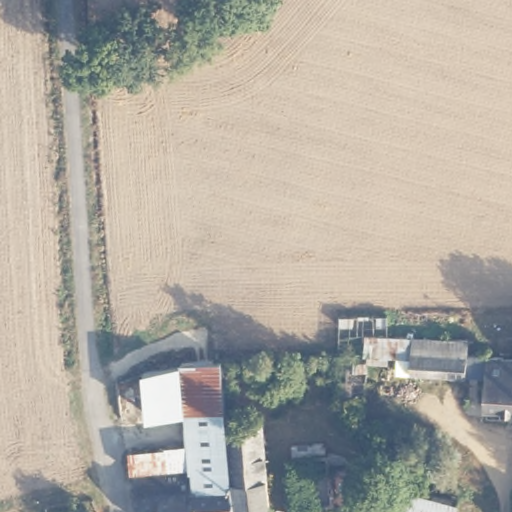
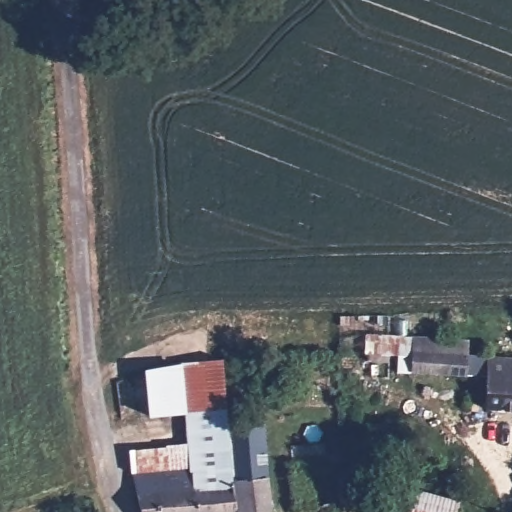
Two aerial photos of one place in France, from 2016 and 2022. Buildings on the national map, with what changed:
unchanged [(491,404),(492,369),(416,365),(417,350),(417,334),(473,336),(473,349),(512,352),(512,405),(491,404)]
unchanged [(163,447),(191,445),(188,408),(148,409),(145,369),(183,366),(182,362),(221,359),(225,413),(236,509),(237,512),(144,512),(135,471),(129,447),(163,444),(163,447)]
unchanged [(262,411),(268,512),(237,512),(236,509),(225,413),(262,411)]
unchanged [(298,502),(293,468),(295,467),(294,452),(323,448),(330,452),(330,463),(335,465),(335,466),(337,497),(332,498),(298,502)]
unchanged [(464,494),(460,512),(393,512),(402,479),(464,494)]

